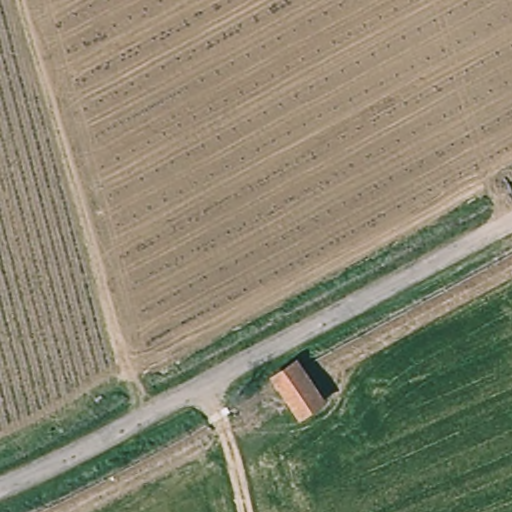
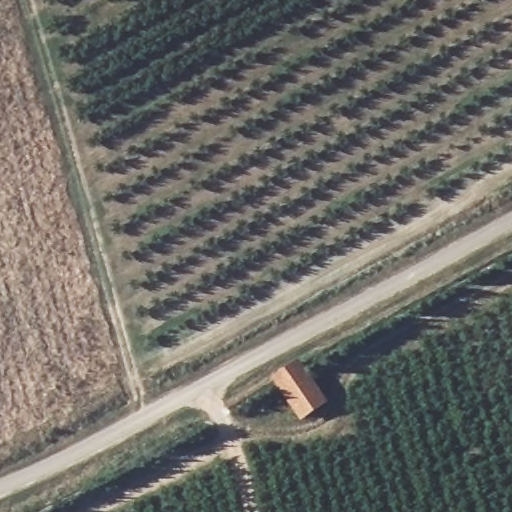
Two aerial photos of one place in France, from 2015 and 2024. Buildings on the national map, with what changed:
unchanged [(323,401),(297,418),(270,376),(297,359),(323,401)]

